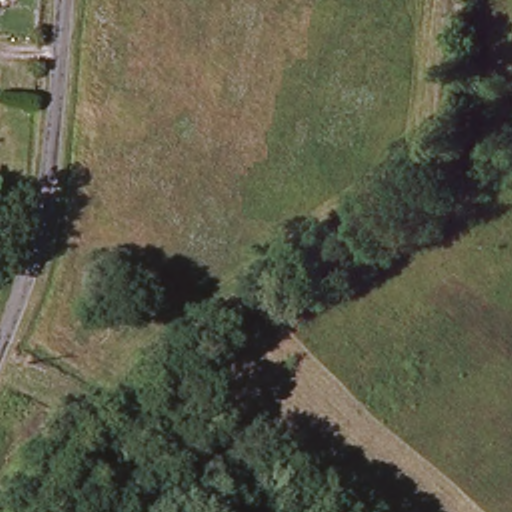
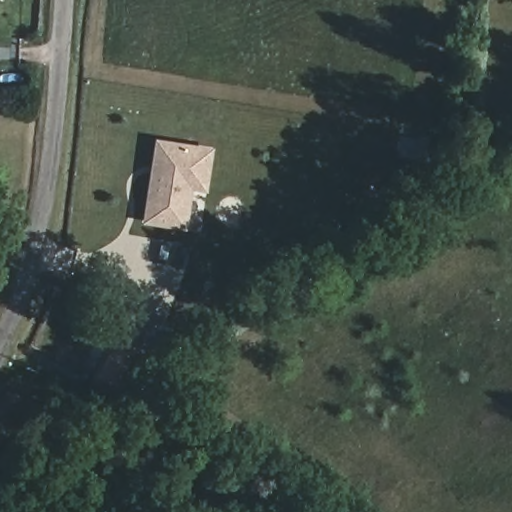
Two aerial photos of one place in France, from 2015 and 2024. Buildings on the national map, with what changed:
new [(187,229),(142,222),(155,138),(215,147),(207,192),(193,190),(187,229)]

